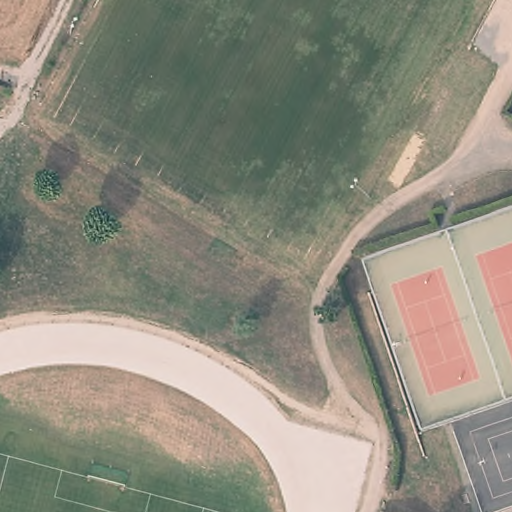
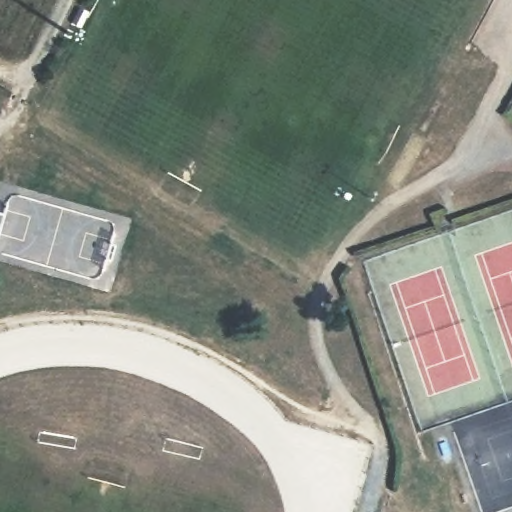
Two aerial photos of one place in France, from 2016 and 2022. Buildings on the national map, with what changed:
unchanged [(396,512),(387,512),(388,510),(396,512)]

